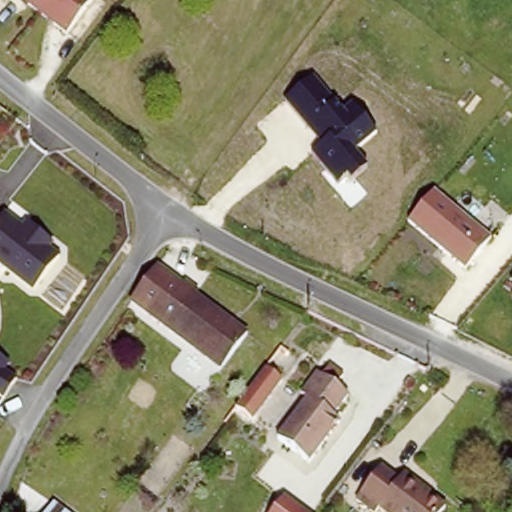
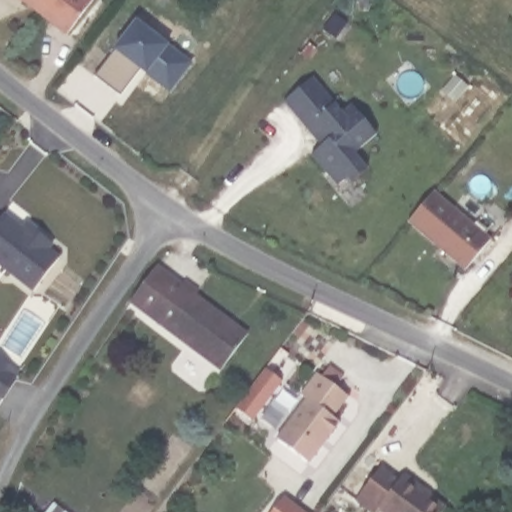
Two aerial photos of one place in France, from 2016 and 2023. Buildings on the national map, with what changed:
unchanged [(60,41),(12,0),(93,0),(60,41)]
new [(172,92),(149,74),(147,76),(144,72),(123,97),(96,77),(117,50),(137,22),(170,46),(193,64),(172,92)]
unchanged [(311,156),(322,147),(284,100),(316,76),(344,110),(350,104),(377,136),(356,152),(369,167),(352,183),(347,178),(337,187),(311,156)]
unchanged [(490,240),(465,269),(407,222),(435,190),(490,240)]
unchanged [(22,227),(26,222),(55,245),(50,251),(57,257),(30,291),(0,267),(0,214),(22,227)]
unchanged [(179,289),(184,288),(197,298),(193,303),(242,341),(217,377),(127,306),(153,268),(179,289)]
new [(8,372),(20,379),(5,401),(0,397),(0,356),(12,364),(8,372)]
unchanged [(317,374),(347,396),(332,417),(340,423),(309,465),(278,442),(307,402),(300,397),(317,374)]
unchanged [(403,480),(407,481),(446,512),(384,512),(381,510),(379,512),(373,512),(357,501),(380,468),(401,483),(403,480)]
unchanged [(273,512),(285,495),(308,512),(273,512)]
unchanged [(46,512),(54,502),(66,512),(46,512)]

